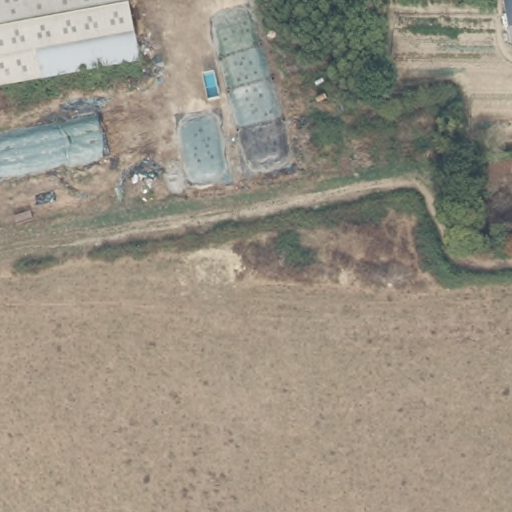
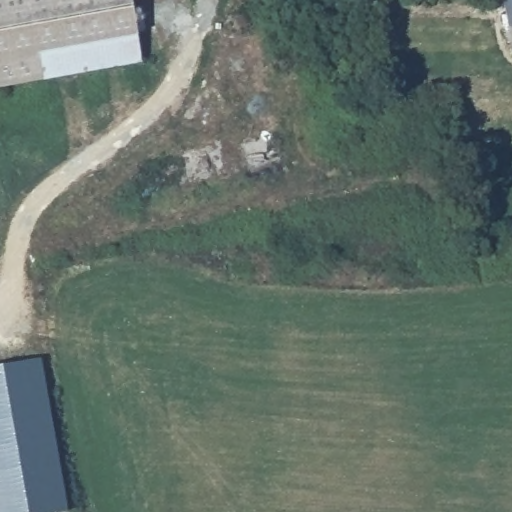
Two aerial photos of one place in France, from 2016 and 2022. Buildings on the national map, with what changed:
unchanged [(131,2),(134,29),(37,43),(34,44),(38,81),(0,90),(0,0),(143,0),(131,2)]
unchanged [(140,64),(38,81),(34,44),(134,29),(140,64)]
new [(40,357),(67,511),(59,512),(0,512),(0,364),(40,357)]

